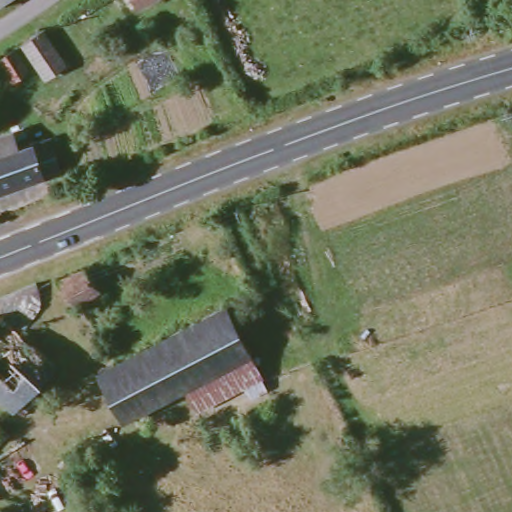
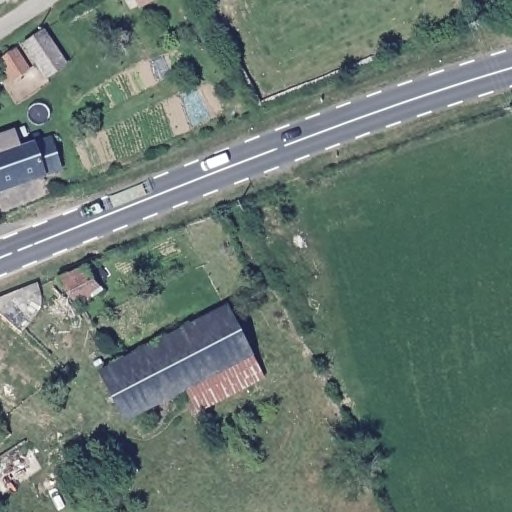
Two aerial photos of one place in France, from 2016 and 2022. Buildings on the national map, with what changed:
unchanged [(140,6),(137,0),(149,0),(140,6)]
unchanged [(44,30),(63,66),(43,77),(25,42),(44,30)]
unchanged [(27,72),(4,84),(0,76),(0,71),(7,67),(2,57),(15,49),(27,72)]
unchanged [(20,135),(12,138),(16,147),(48,137),(57,168),(40,174),(0,187),(0,133),(18,127),(20,135)]
unchanged [(105,272),(95,278),(100,287),(79,301),(58,274),(87,262),(91,267),(97,262),(105,272)]
unchanged [(42,295),(38,310),(19,332),(55,366),(13,412),(0,400),(0,380),(1,379),(0,378),(0,294),(35,281),(42,295)]
unchanged [(261,375),(196,411),(183,385),(125,416),(101,368),(117,360),(222,305),(261,375)]

